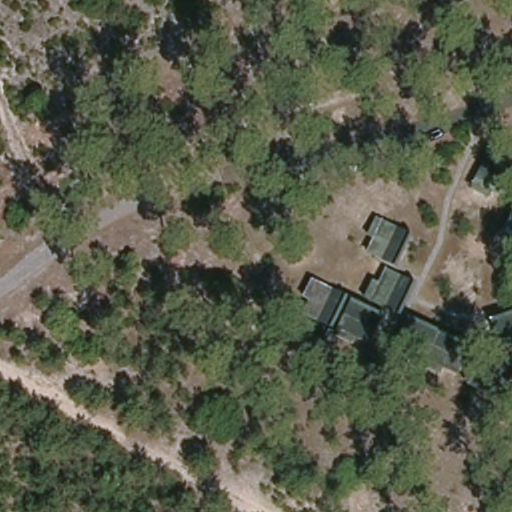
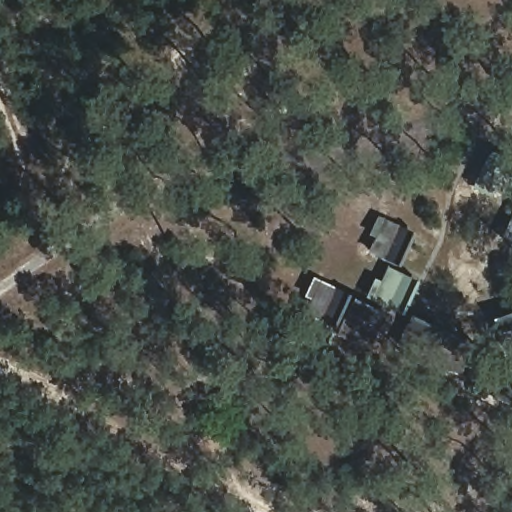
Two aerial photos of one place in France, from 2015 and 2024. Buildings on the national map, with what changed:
unchanged [(477,185),(492,156),(512,169),(512,184),(504,200),(477,185)]
unchanged [(399,266),(368,251),(383,220),(414,236),(399,266)]
unchanged [(512,222),(512,237),(506,234),(512,222)]
unchanged [(404,309),(379,296),(392,271),(417,285),(404,309)]
unchanged [(334,325),(305,310),(319,281),(349,295),(334,325)]
unchanged [(371,342),(344,330),(359,301),(385,315),(371,342)]
unchanged [(491,316),(512,309),(512,345),(503,348),(491,316)]
unchanged [(394,342),(411,311),(442,327),(426,358),(394,342)]
unchanged [(313,362),(285,347),(301,318),(329,334),(313,362)]
unchanged [(442,327),(475,345),(459,376),(426,358),(442,327)]

